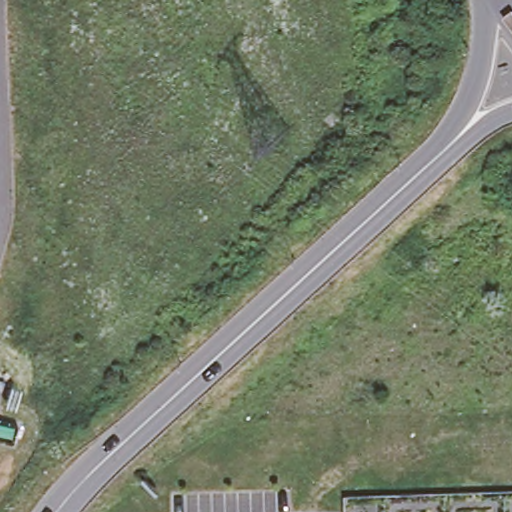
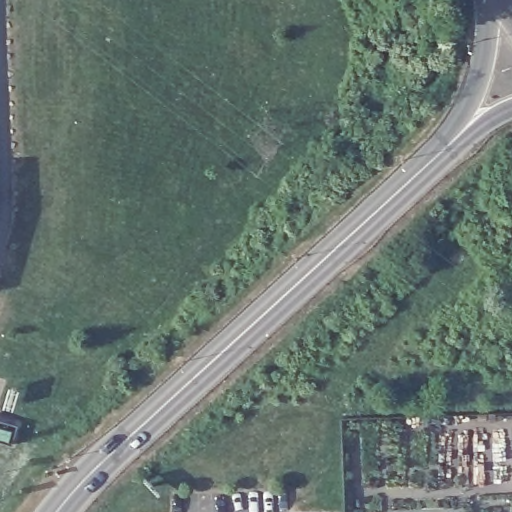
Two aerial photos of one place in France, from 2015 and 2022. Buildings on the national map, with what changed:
unchanged [(345,125),(335,134),(325,123),(337,114),(345,125)]

